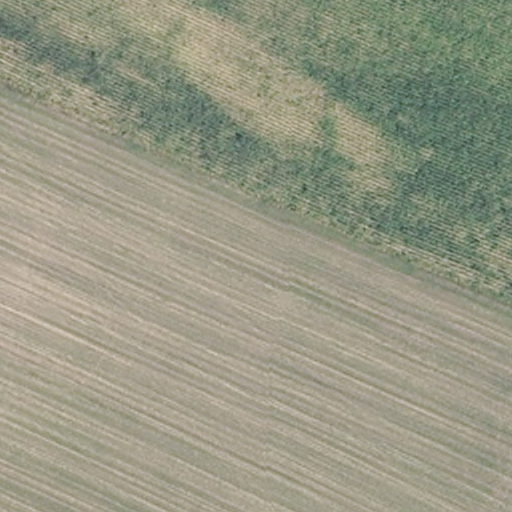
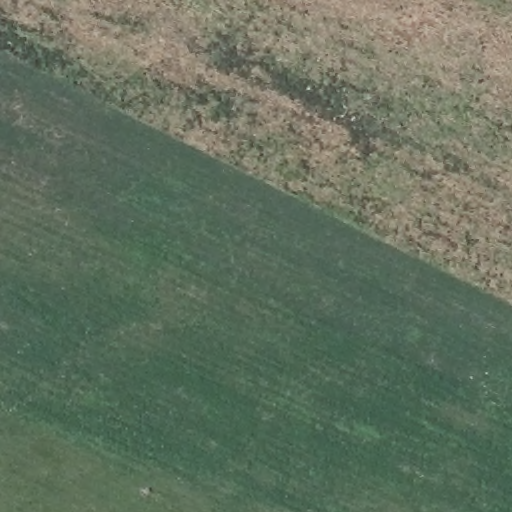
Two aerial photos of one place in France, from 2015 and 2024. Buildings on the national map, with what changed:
[]

